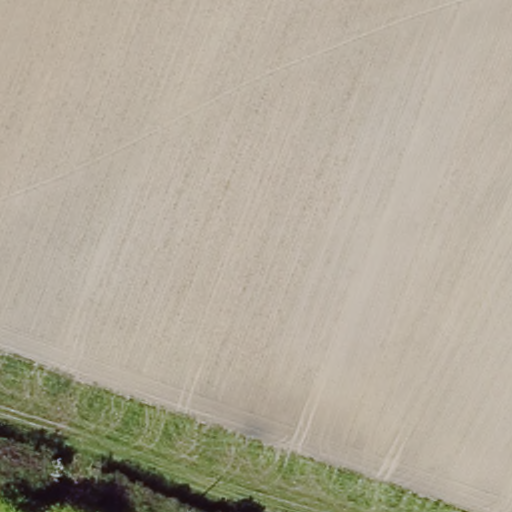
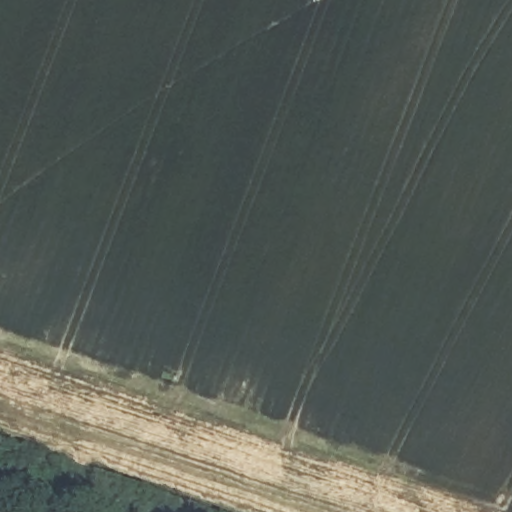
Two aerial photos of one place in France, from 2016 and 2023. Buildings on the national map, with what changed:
[]

